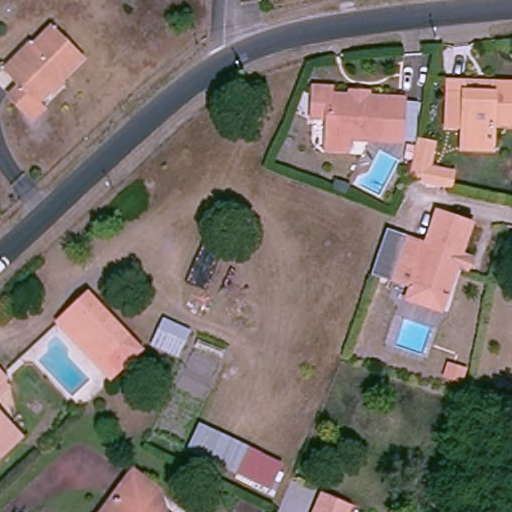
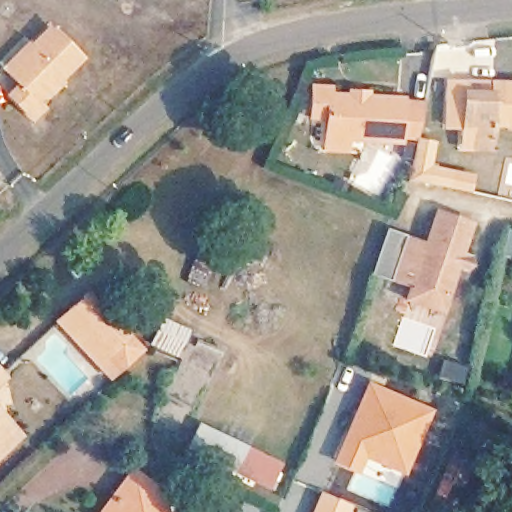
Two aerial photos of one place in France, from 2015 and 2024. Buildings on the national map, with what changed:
unchanged [(33,120),(26,113),(8,94),(20,82),(8,70),(1,63),(16,51),(30,35),(36,42),(49,29),(60,40),(79,59),(61,79),(67,86),(33,120)]
unchanged [(327,140),(327,125),(327,110),(314,109),(314,79),(331,79),(331,87),(349,88),(349,82),(369,82),(369,88),(404,89),(402,126),(349,125),(350,140),(327,140)]
unchanged [(468,150),(468,137),(467,127),(448,127),(446,83),(466,83),(492,81),(512,81),(512,121),(494,121),(495,136),(495,149),(468,150)]
unchanged [(417,136),(433,140),(431,149),(428,164),(453,169),(450,184),(409,176),(415,145),(417,136)]
unchanged [(388,279),(405,235),(422,241),(434,209),(472,223),(459,255),(470,259),(462,279),(452,275),(437,312),(400,297),(383,291),(388,279)]
unchanged [(74,308),(91,290),(130,332),(148,349),(117,379),(112,374),(100,363),(62,321),(74,308)]
new [(442,358),(467,365),(461,384),(436,377),(442,358)]
unchanged [(0,382),(0,368),(7,375),(0,382)]
new [(364,379),(432,408),(402,476),(365,462),(360,474),(332,463),(364,379)]
unchanged [(0,452),(0,410),(20,432),(0,452)]
unchanged [(284,465),(272,494),(184,451),(196,423),(284,465)]
unchanged [(151,503),(164,512),(103,512),(129,474),(157,494),(151,503)]
unchanged [(352,509),(351,512),(321,512),(327,498),(352,509)]

